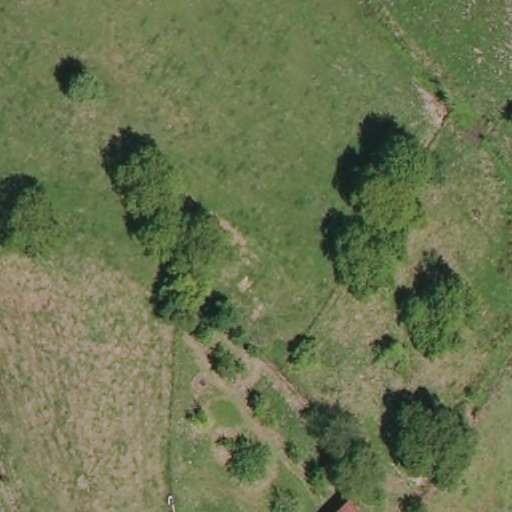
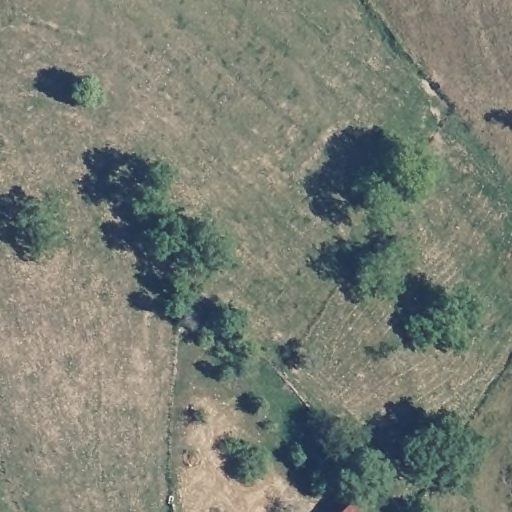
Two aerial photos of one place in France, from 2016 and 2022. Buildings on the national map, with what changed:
unchanged [(348,508),(352,512),(343,512),(348,508)]

